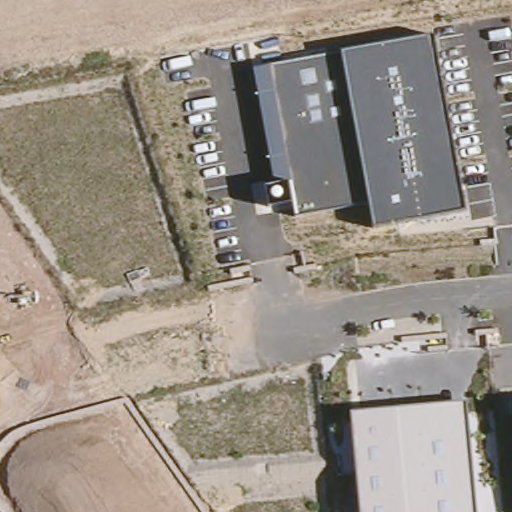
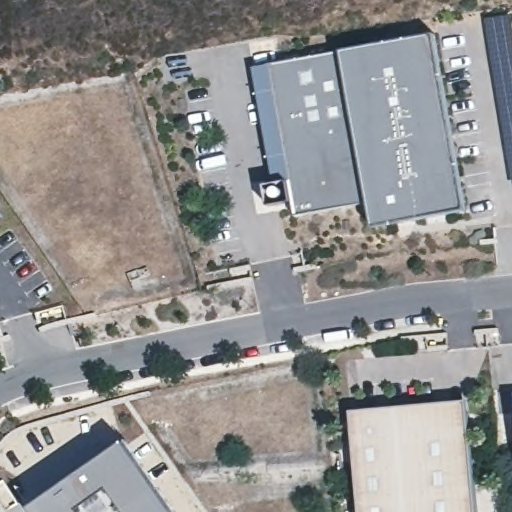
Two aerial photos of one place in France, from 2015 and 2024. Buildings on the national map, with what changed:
unchanged [(293,202),(270,206),(266,186),(275,185),(253,69),(342,52),(435,35),(466,211),(375,228),(370,203),(295,216),(293,202)]
unchanged [(465,402),(475,512),(361,512),(352,413),(465,402)]
new [(175,512),(33,512),(32,510),(127,443),(175,512)]

